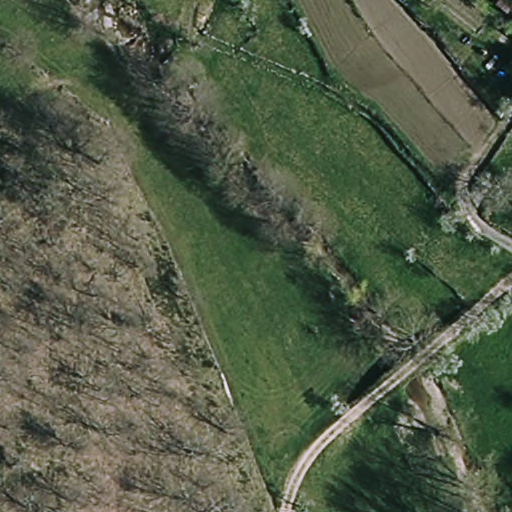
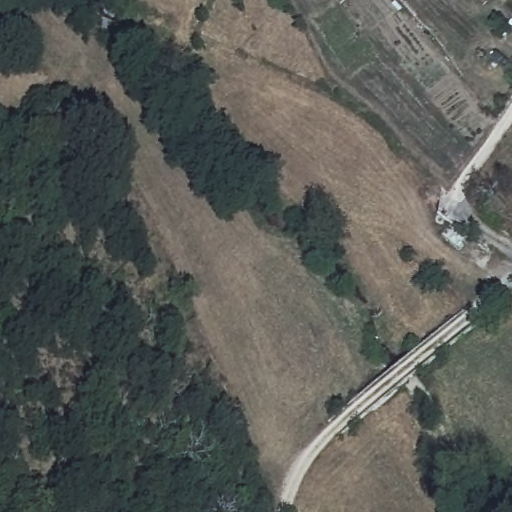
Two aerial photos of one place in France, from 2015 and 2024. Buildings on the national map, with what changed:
unchanged [(506,17),(496,10),(501,5),(511,12),(506,17)]

